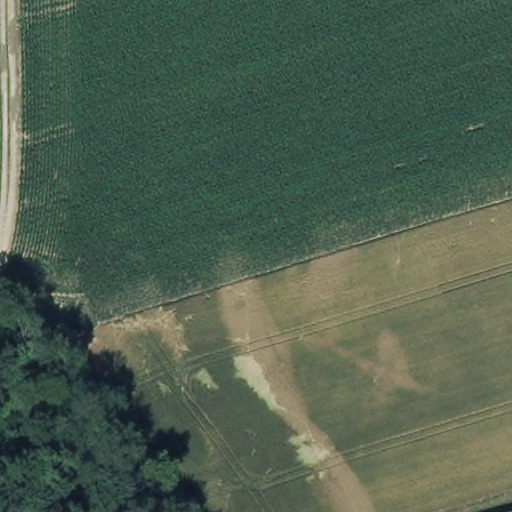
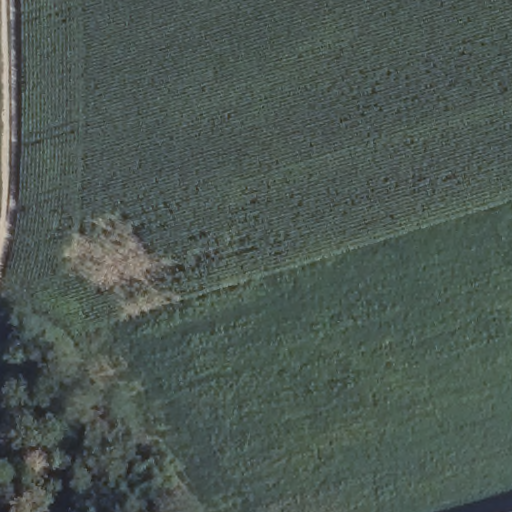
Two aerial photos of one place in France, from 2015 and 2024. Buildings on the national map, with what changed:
unchanged [(504,512),(512,509),(512,512),(504,512)]

